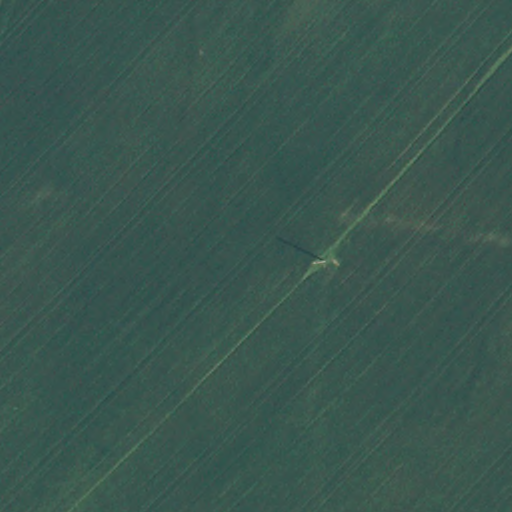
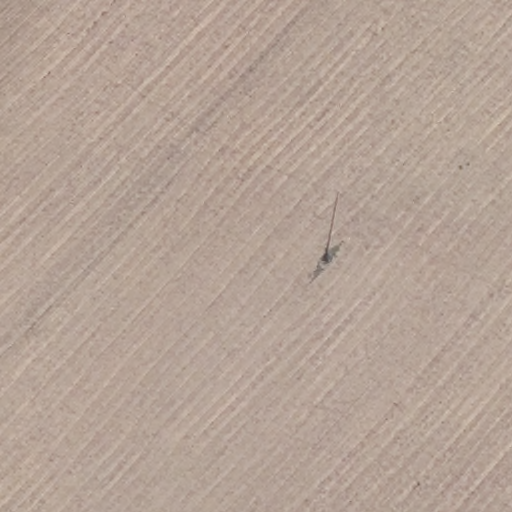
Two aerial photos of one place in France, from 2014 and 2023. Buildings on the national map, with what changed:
[]

